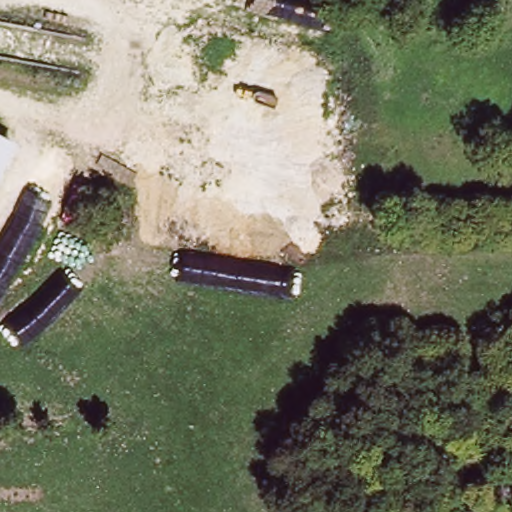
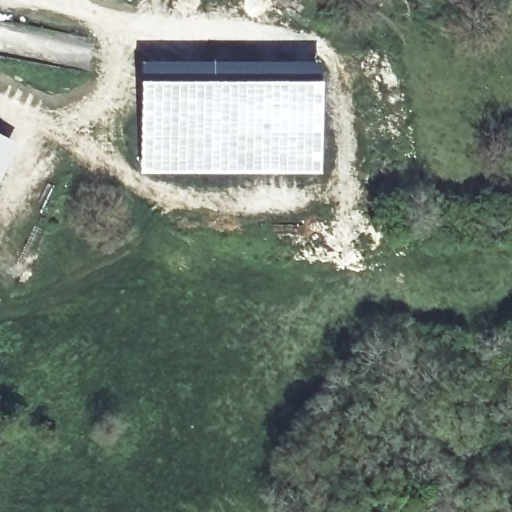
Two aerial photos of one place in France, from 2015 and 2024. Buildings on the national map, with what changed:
new [(320,174),(141,174),(140,62),(320,63),(320,174)]
unchanged [(0,135),(20,144),(0,183),(0,135)]

